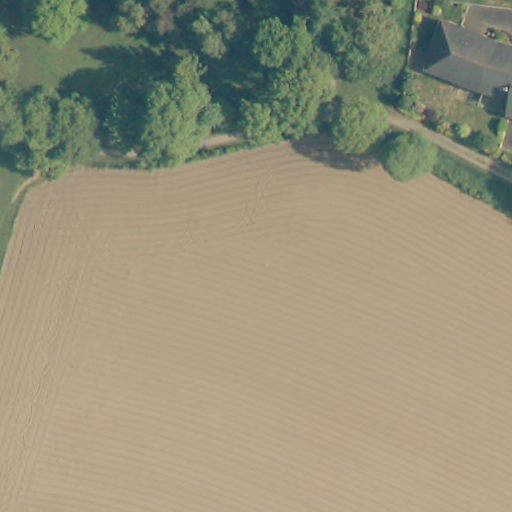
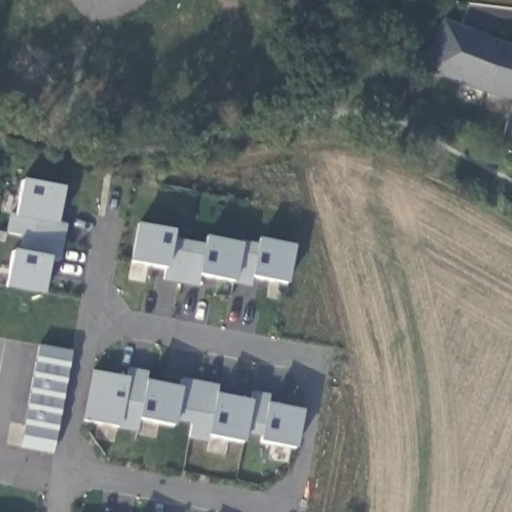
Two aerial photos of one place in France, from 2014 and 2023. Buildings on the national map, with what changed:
unchanged [(505,117),(508,100),(432,66),(452,22),(512,42),(512,119),(505,117)]
new [(12,250),(18,251),(21,235),(7,233),(9,215),(16,216),(22,180),(64,188),(59,223),(67,225),(62,260),(51,258),(45,294),(6,288),(12,250)]
new [(165,268),(132,263),(138,224),(173,231),(172,238),(204,244),(205,236),(257,243),(258,239),(295,245),(289,284),(252,276),(252,285),(237,282),(199,274),(197,287),(163,280),(165,268)]
new [(72,351),(54,454),(22,447),(39,344),(72,351)]
new [(297,449),(258,442),(246,440),(246,443),(211,437),(209,443),(188,439),(191,424),(177,421),(176,426),(140,418),(137,433),(84,421),(94,371),(127,377),(130,368),(149,371),(147,381),(181,388),(183,377),(220,384),(217,394),(252,401),(254,391),(271,394),(269,404),(304,411),(297,449)]

